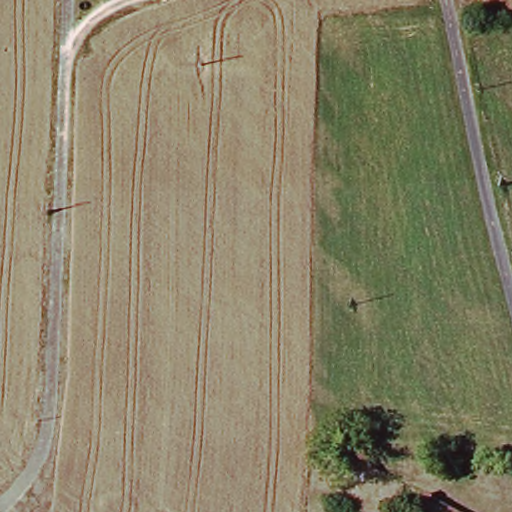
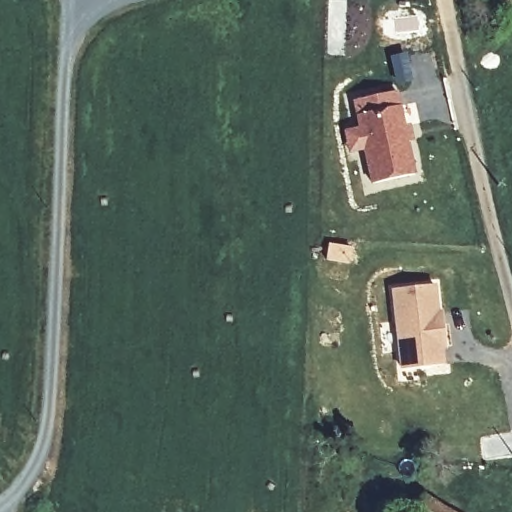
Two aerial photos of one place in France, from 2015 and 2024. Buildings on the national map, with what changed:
new [(391,92),(395,106),(403,142),(402,143),(409,176),(367,184),(350,101),(365,98),(391,92)]
new [(433,318),(438,317),(440,330),(441,347),(437,348),(438,365),(398,369),(389,290),(430,286),(433,318)]
unchanged [(430,496),(462,512),(422,512),(430,496)]

